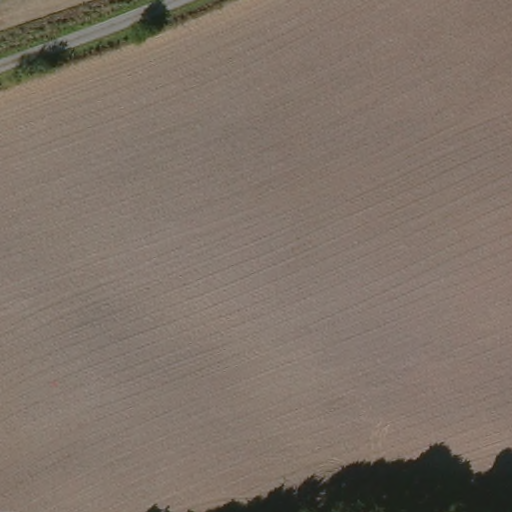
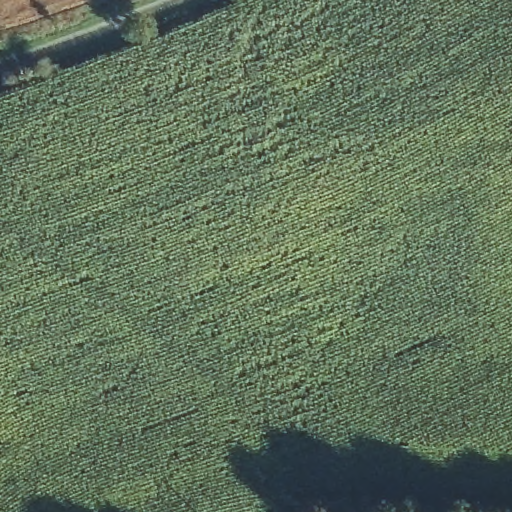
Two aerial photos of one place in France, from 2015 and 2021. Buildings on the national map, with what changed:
[]

